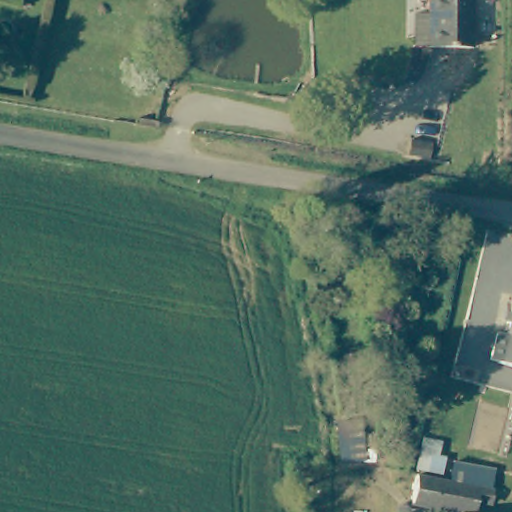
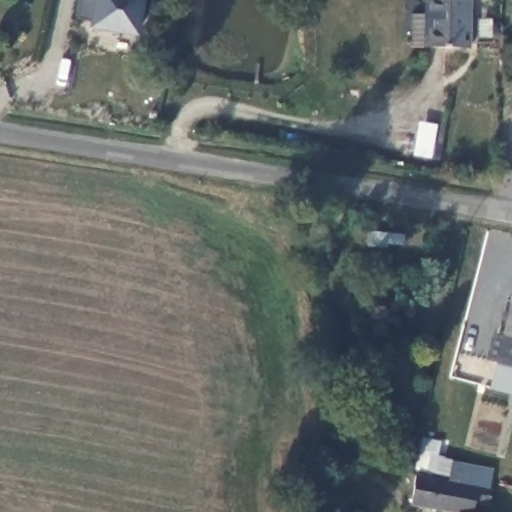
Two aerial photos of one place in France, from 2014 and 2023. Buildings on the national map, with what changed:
new [(87,21),(76,20),(80,0),(144,0),(139,35),(87,28),(87,21)]
unchanged [(413,0),(470,0),(469,44),(412,42),(413,0)]
unchanged [(512,342),(512,360),(507,358),(512,342)]
unchanged [(351,461),(338,462),(335,421),(347,421),(351,461)]
unchanged [(371,449),(372,459),(359,460),(358,450),(371,449)]
unchanged [(495,500),(482,498),(479,512),(462,512),(416,503),(422,473),(479,484),(499,488),(495,500)]

